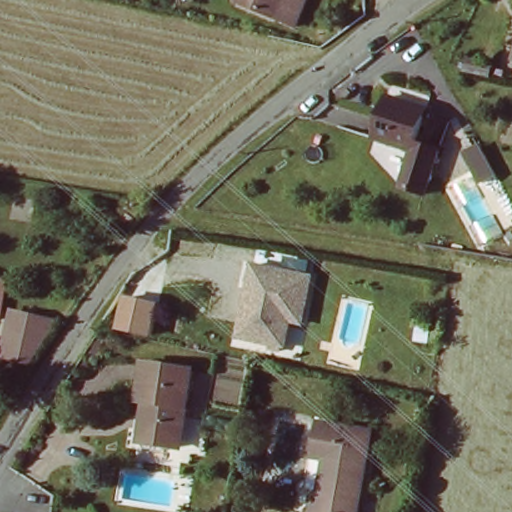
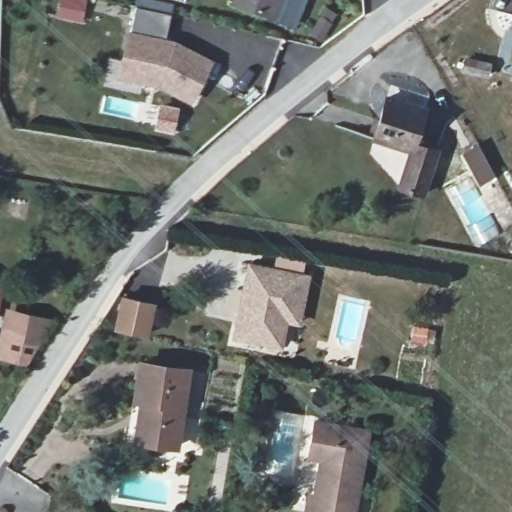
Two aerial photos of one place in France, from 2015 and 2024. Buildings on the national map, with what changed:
unchanged [(265,16),(233,0),(281,0),(272,20),(265,16)]
new [(171,13),(166,37),(175,39),(216,60),(192,104),(157,86),(118,77),(127,28),(132,29),(136,7),(171,13)]
unchanged [(405,186),(412,149),(408,148),(374,142),(382,97),(420,106),(414,142),(438,146),(437,153),(430,190),(405,186)]
unchanged [(287,324),(282,350),(235,341),(250,268),(309,280),(303,311),(299,327),(287,324)]
unchanged [(8,315),(27,318),(24,337),(18,363),(0,360),(8,315)]
unchanged [(184,367),(173,443),(136,438),(142,398),(132,397),(137,361),(184,367)]
unchanged [(315,495),(323,457),(308,453),(314,420),(366,429),(353,512),(306,512),(310,494),(315,495)]

